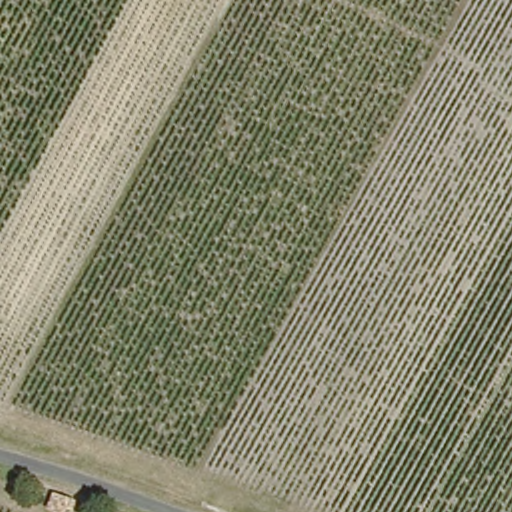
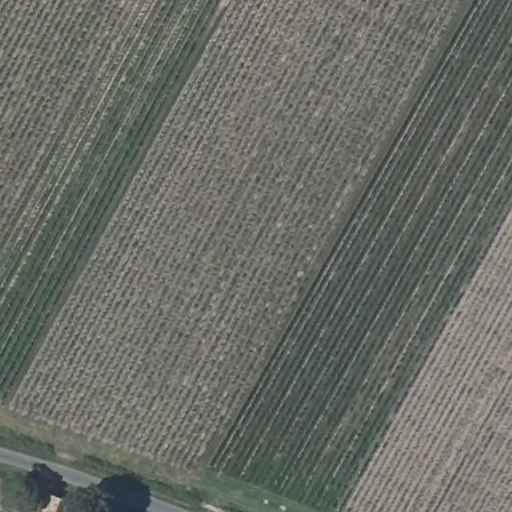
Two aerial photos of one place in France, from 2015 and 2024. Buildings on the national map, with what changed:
unchanged [(47,512),(43,511),(48,492),(73,502),(72,512),(47,512)]

